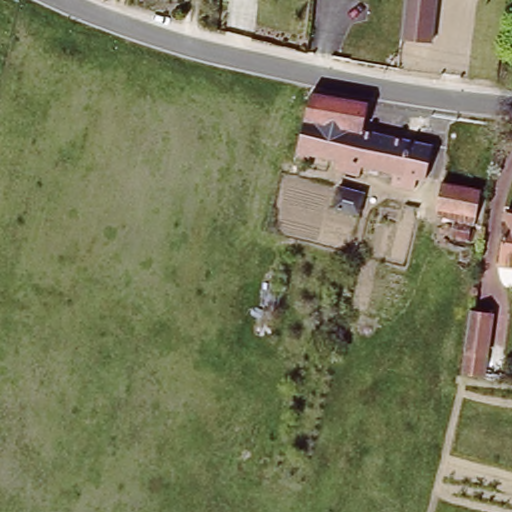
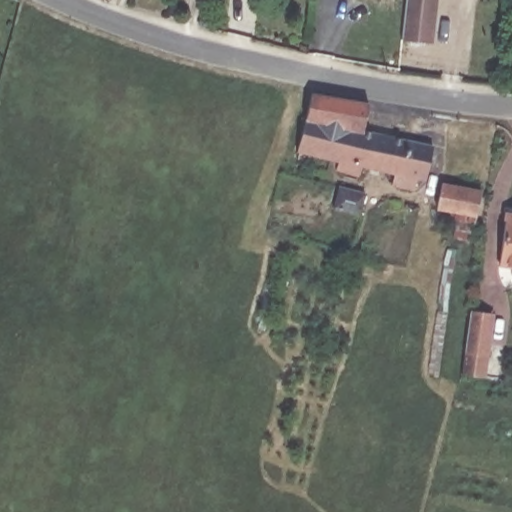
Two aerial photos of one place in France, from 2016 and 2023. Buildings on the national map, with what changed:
unchanged [(402,38),(406,0),(436,0),(432,43),(402,38)]
unchanged [(362,125),(433,141),(427,174),(418,173),(417,184),(395,182),(397,168),(365,161),(363,170),(337,164),(339,154),(310,149),(308,158),(295,154),(307,89),(366,99),(362,125)]
unchanged [(472,219),(468,219),(429,210),(435,184),(476,194),(472,219)]
unchanged [(362,193),(357,214),(333,209),(337,188),(362,193)]
unchanged [(503,260),(510,207),(512,207),(512,261),(503,260)]
unchanged [(475,310),(498,313),(493,355),(469,351),(475,310)]

